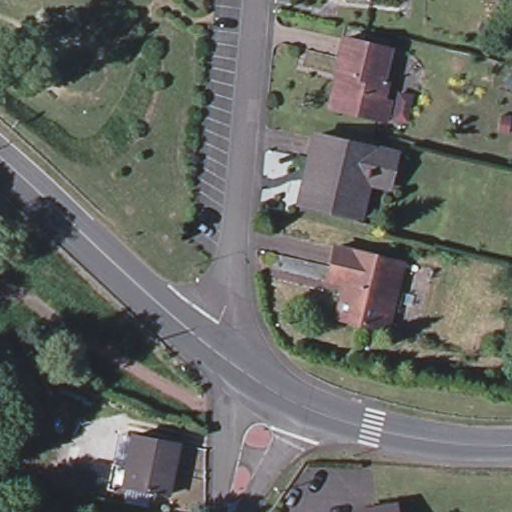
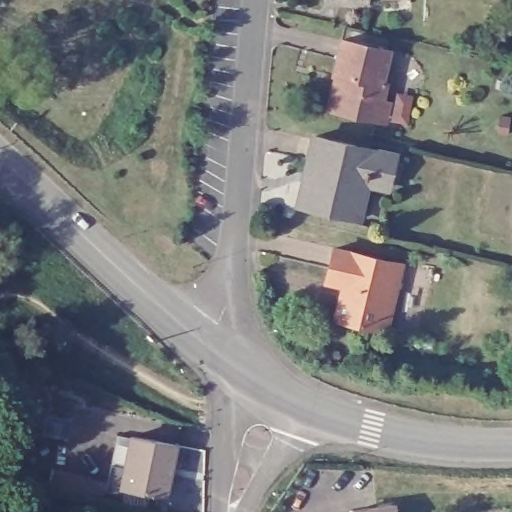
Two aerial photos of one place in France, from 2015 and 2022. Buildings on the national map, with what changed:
unchanged [(385,121),(378,119),(335,109),(329,108),(337,74),(335,73),(343,39),(388,50),(381,81),(386,83),(383,97),(390,99),(385,121)]
unchanged [(299,167),(307,133),(387,152),(382,175),(380,185),(359,181),(351,216),(298,205),(290,203),(299,167)]
unchanged [(328,279),(336,247),(400,262),(382,329),(337,317),(343,293),(346,283),(328,279)]
unchanged [(177,444),(167,496),(110,484),(113,464),(128,467),(134,436),(177,444)]
unchanged [(372,509),(397,505),(398,512),(355,512),(372,509)]

